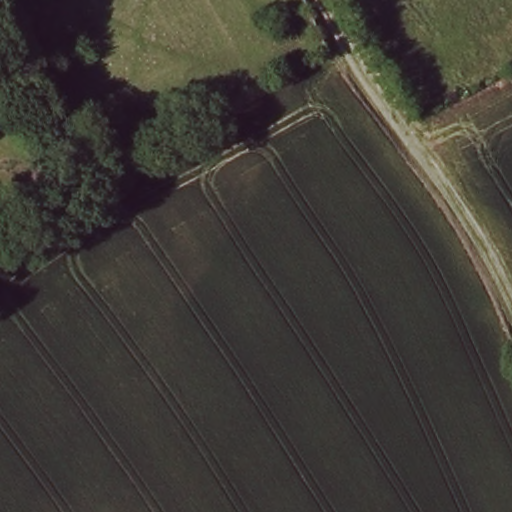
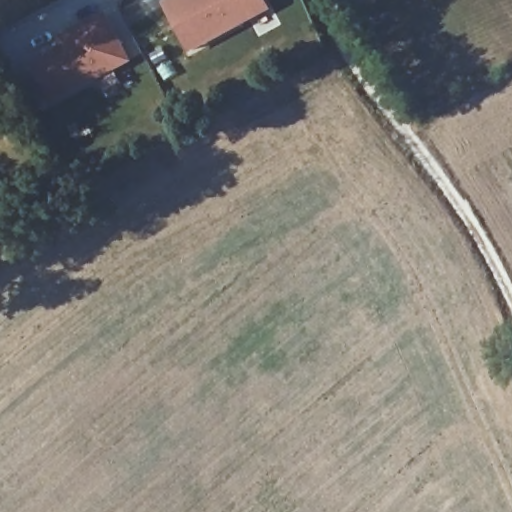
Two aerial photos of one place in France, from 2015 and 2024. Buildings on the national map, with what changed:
new [(189,54),(162,4),(169,0),(265,0),(270,10),(189,54)]
new [(51,103),(30,61),(62,43),(58,35),(105,10),(131,62),(51,103)]

